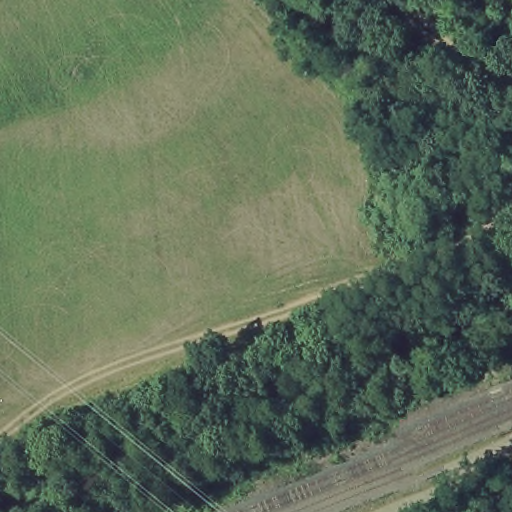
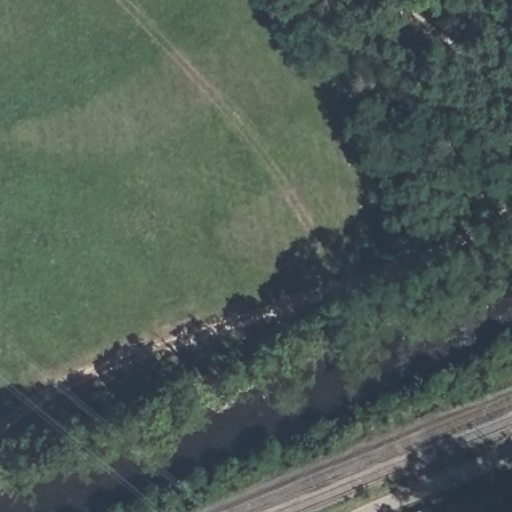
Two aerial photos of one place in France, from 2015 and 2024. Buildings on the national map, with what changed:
[]

